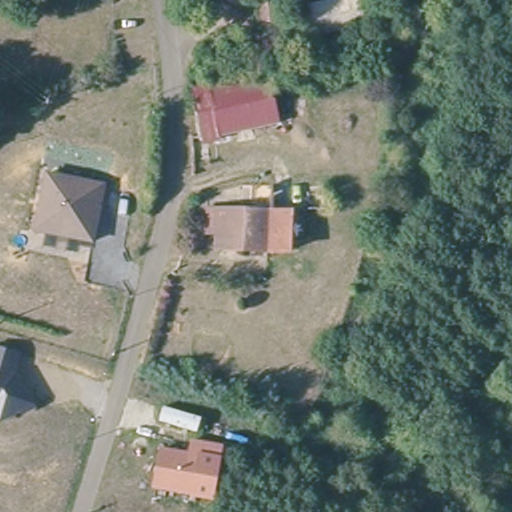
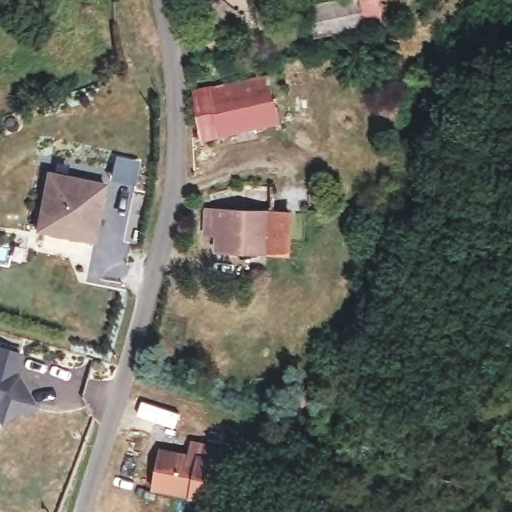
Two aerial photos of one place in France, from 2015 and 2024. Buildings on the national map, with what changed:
unchanged [(311,34),(307,4),(334,0),(359,0),(362,24),(311,34)]
unchanged [(293,92),(275,97),(279,111),(283,110),(287,124),(207,139),(196,91),(291,73),(293,92)]
unchanged [(108,183),(95,243),(34,231),(45,170),(108,183)]
unchanged [(310,219),(279,219),(279,261),(211,255),(211,238),(199,236),(200,211),(258,215),(260,189),(311,190),(310,219)]
unchanged [(17,372),(20,374),(36,406),(0,422),(0,348),(22,354),(17,372)]
unchanged [(190,440),(223,445),(220,459),(212,501),(151,489),(160,448),(187,453),(190,440)]

